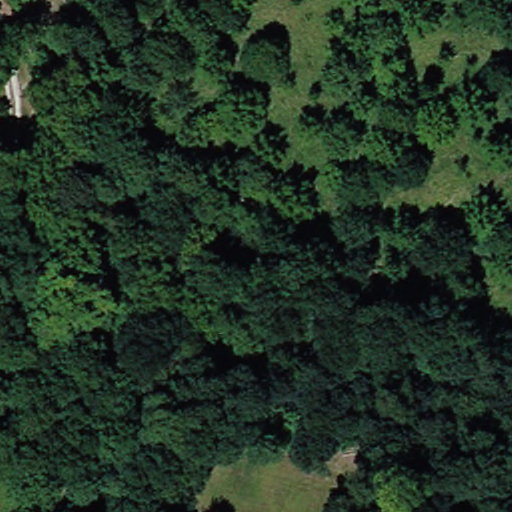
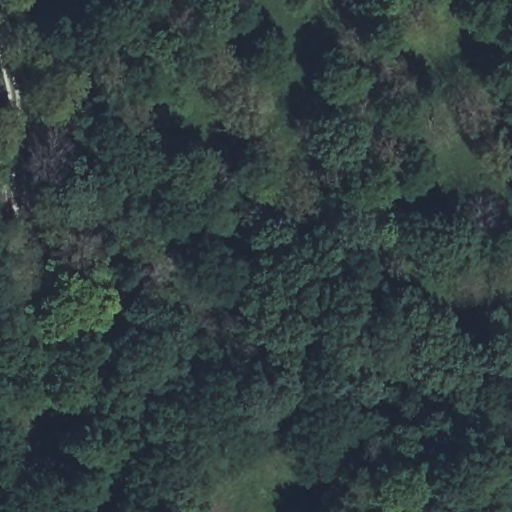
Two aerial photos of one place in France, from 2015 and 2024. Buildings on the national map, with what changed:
[]

